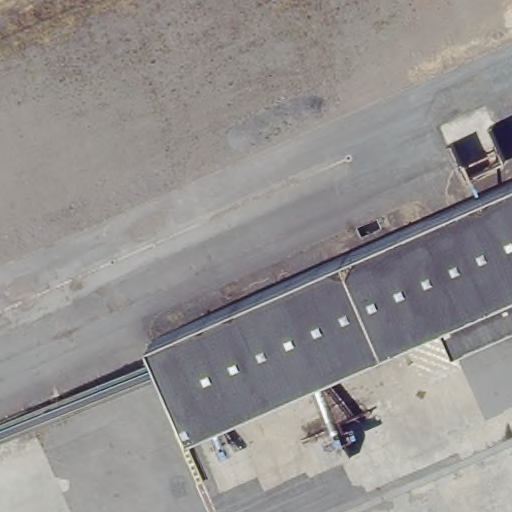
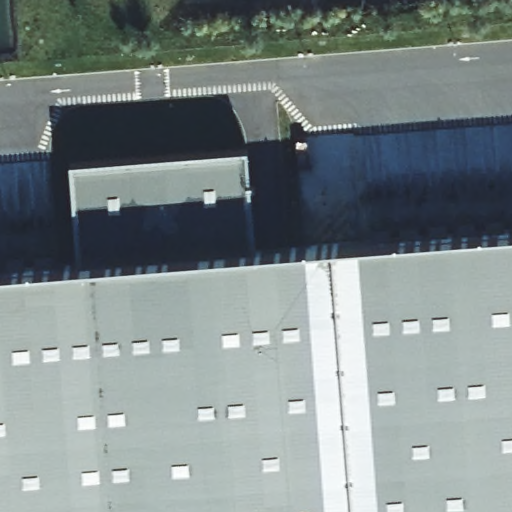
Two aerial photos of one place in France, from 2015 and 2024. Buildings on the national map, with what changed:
new [(67,170),(243,154),(251,261),(512,240),(512,512),(0,512),(0,281),(73,275),(67,170)]
demolished [(440,327),(188,420),(155,328),(512,195),(512,280),(490,297),(442,333),(440,327)]
demolished [(490,297),(512,280),(512,333),(450,356),(442,333),(490,297)]

